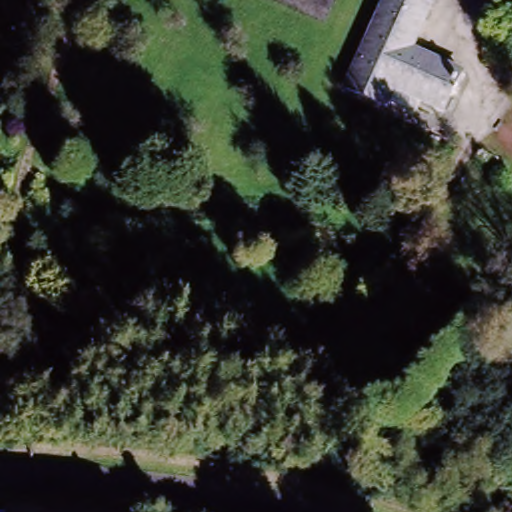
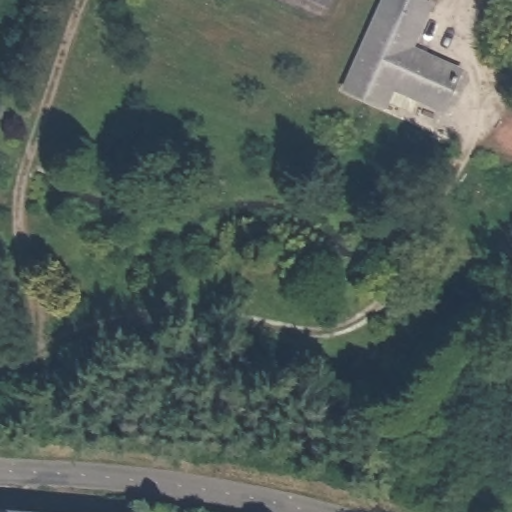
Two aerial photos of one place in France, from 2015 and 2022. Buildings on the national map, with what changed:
unchanged [(378,0),(432,0),(435,1),(415,46),(463,70),(443,115),(414,100),(410,110),(386,101),(385,109),(340,90),(378,0)]
unchanged [(41,510),(41,512),(0,512),(0,505),(41,510)]
unchanged [(60,512),(41,512),(41,510),(60,512)]

